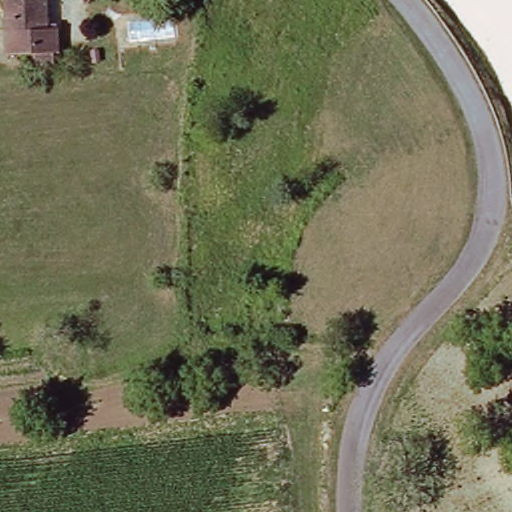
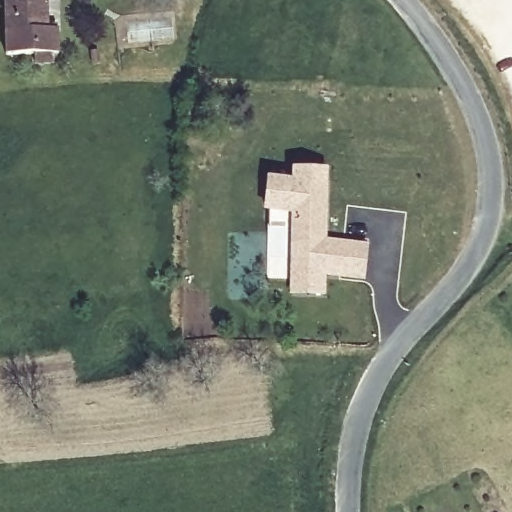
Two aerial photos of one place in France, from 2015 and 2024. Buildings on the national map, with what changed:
unchanged [(62,27),(63,47),(10,49),(10,0),(55,0),(55,27),(62,27)]
new [(264,213),(267,177),(291,180),(292,168),(327,169),(327,240),(367,244),(365,281),(326,276),(325,296),(290,295),(291,215),(264,213)]

